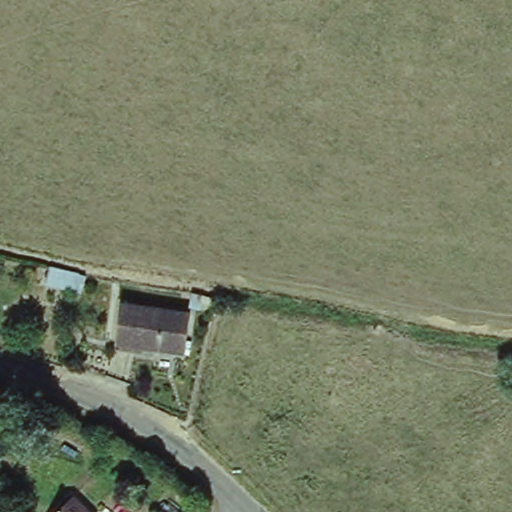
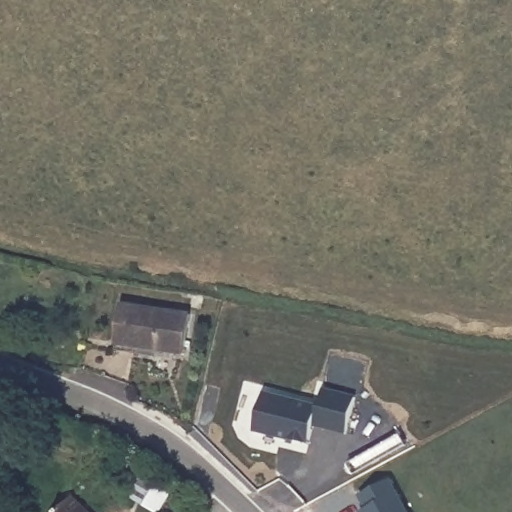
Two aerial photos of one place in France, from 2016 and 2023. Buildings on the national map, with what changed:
unchanged [(86,271),(83,288),(45,281),(48,263),(86,271)]
unchanged [(193,316),(181,353),(114,335),(124,297),(193,316)]
new [(317,405),(321,387),(356,396),(347,433),(314,425),(309,445),(254,432),(263,391),(317,405)]
new [(361,512),(366,509),(359,496),(391,480),(409,512),(361,512)]
unchanged [(94,512),(55,512),(76,492),(94,512)]

